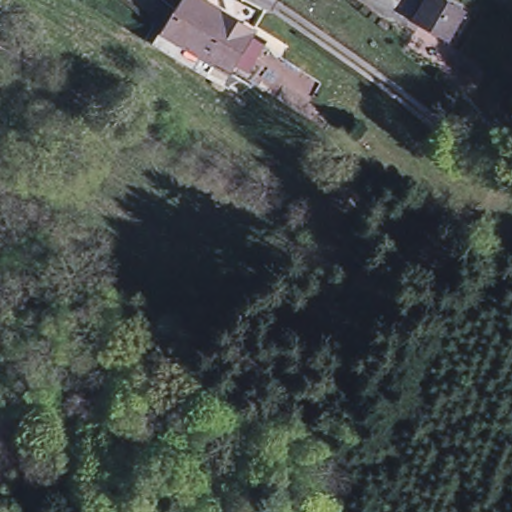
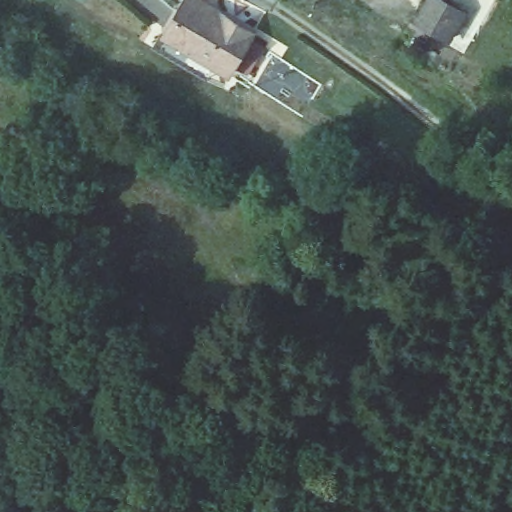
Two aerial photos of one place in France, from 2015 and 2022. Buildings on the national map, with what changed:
unchanged [(182,0),(202,0),(251,28),(229,67),(165,30),(182,0)]
unchanged [(429,0),(441,0),(462,13),(448,37),(418,19),(429,0)]

